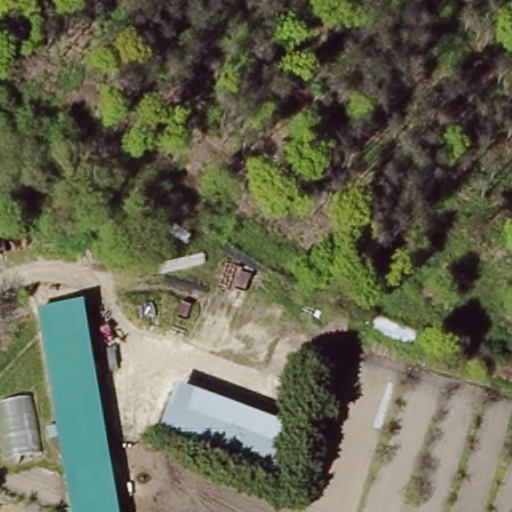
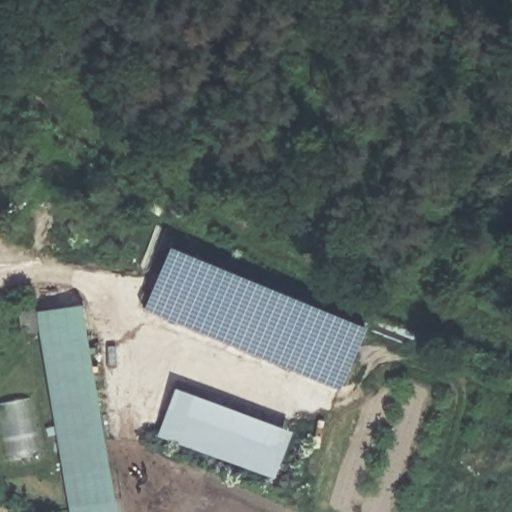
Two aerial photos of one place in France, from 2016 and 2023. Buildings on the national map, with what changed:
new [(145,308),(169,249),(371,322),(343,391),(145,308)]
unchanged [(87,315),(124,512),(70,512),(45,321),(87,315)]
unchanged [(296,430),(272,473),(152,431),(171,381),(296,430)]

